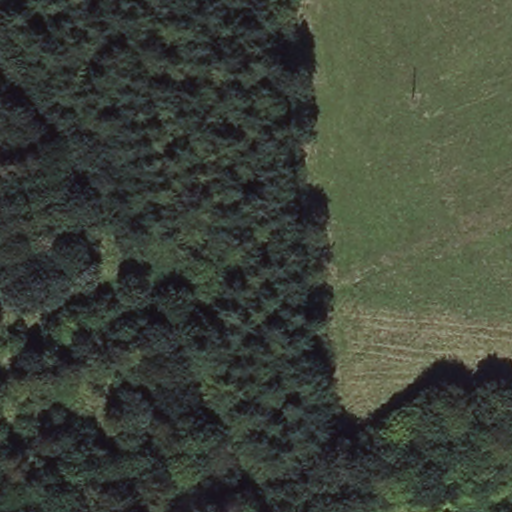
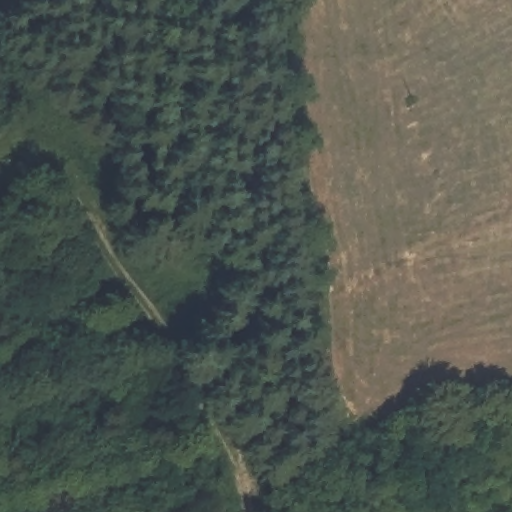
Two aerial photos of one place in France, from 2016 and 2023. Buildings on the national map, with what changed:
[]

